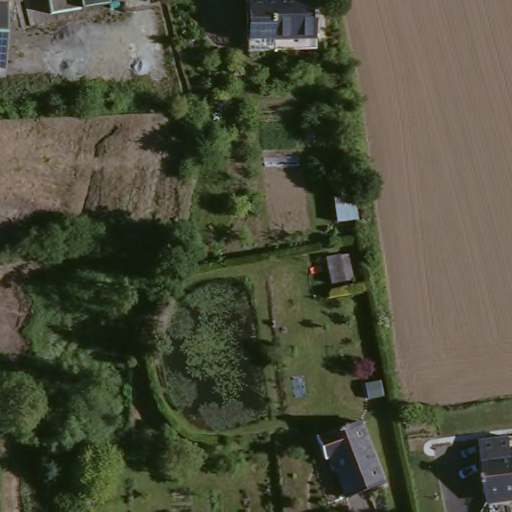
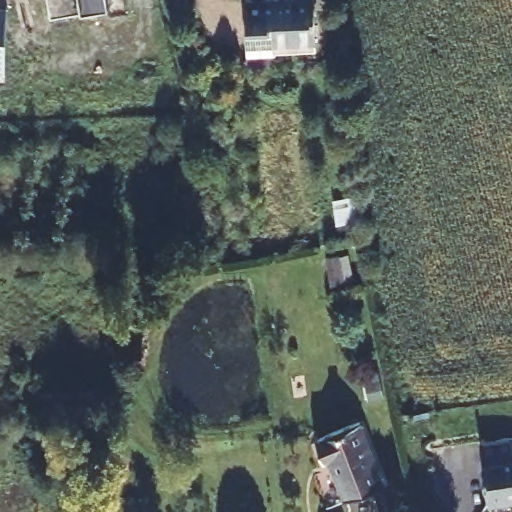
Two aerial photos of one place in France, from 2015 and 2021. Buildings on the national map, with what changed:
unchanged [(106,7),(47,17),(43,0),(105,0),(106,7)]
unchanged [(252,44),(252,33),(250,0),(310,0),(316,31),(316,32),(278,33),(278,44),(252,44)]
unchanged [(0,68),(0,3),(8,3),(6,68),(0,68)]
unchanged [(365,196),(368,218),(349,223),(347,199),(365,195),(365,196)]
unchanged [(346,254),(350,280),(337,282),(332,256),(346,254)]
unchanged [(363,420),(383,482),(345,496),(330,454),(324,456),(317,437),(363,420)]
unchanged [(512,456),(512,498),(486,502),(480,460),(512,456)]

